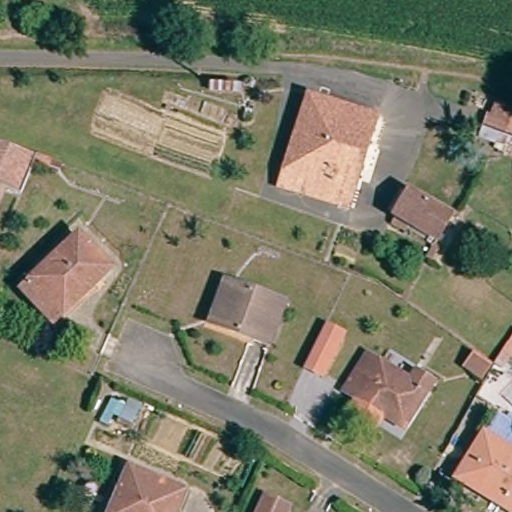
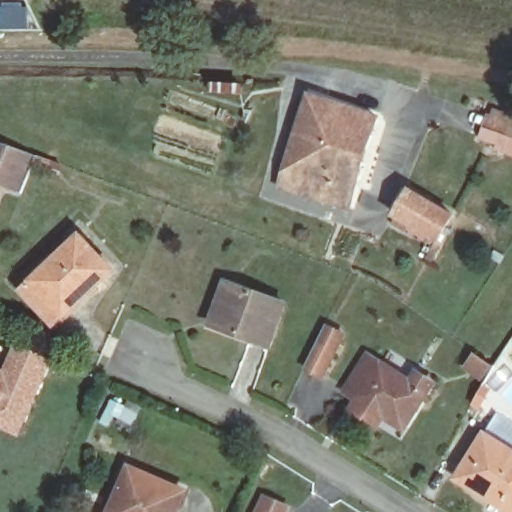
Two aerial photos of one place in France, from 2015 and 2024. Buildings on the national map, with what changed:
unchanged [(381,118),(352,207),(284,184),(314,96),(381,118)]
unchanged [(512,152),(478,137),(497,96),(512,101),(512,152)]
unchanged [(3,141),(39,155),(23,193),(1,186),(0,190),(0,151),(3,141)]
unchanged [(437,237),(393,211),(408,185),(452,210),(437,237)]
unchanged [(61,322),(28,290),(38,281),(83,238),(114,270),(88,295),(71,312),(61,322)]
unchanged [(214,309),(225,283),(283,306),(269,343),(221,325),(209,321),(214,309)]
unchanged [(328,375),(311,366),(317,353),(333,324),(346,331),(347,338),(328,375)]
new [(0,430),(0,368),(4,370),(15,343),(54,360),(20,438),(0,430)]
unchanged [(359,409),(365,398),(351,390),(371,354),(416,381),(422,371),(437,380),(411,425),(389,413),(383,423),(359,409)]
unchanged [(491,379),(474,368),(484,354),(501,366),(491,379)]
unchanged [(487,433),(500,411),(512,419),(512,506),(461,475),(487,433)]
unchanged [(118,487),(121,488),(130,464),(184,486),(175,506),(173,512),(107,512),(118,487)]
unchanged [(290,512),(261,512),(269,492),(294,502),(290,512)]

